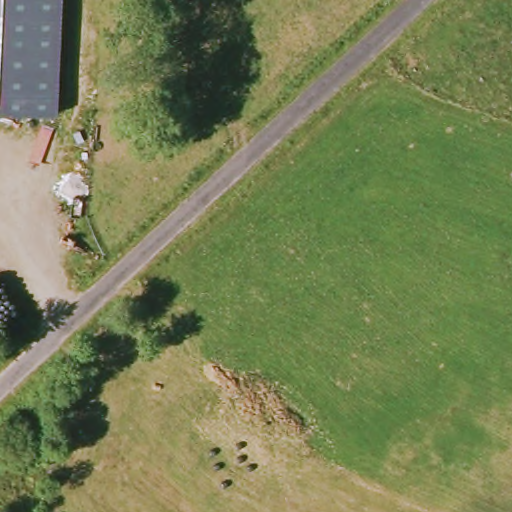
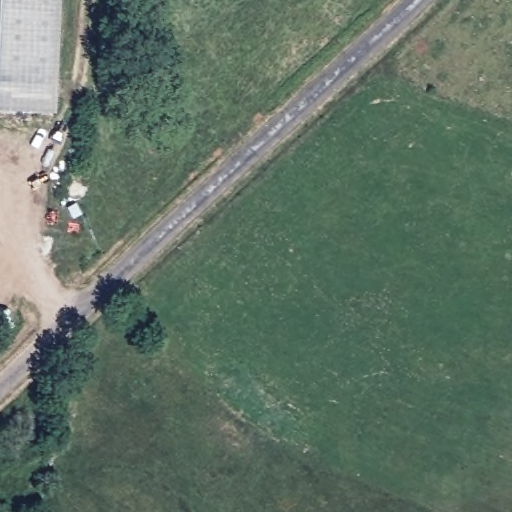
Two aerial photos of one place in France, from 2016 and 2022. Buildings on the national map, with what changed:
unchanged [(56,113),(0,111),(0,0),(61,0),(56,113)]

